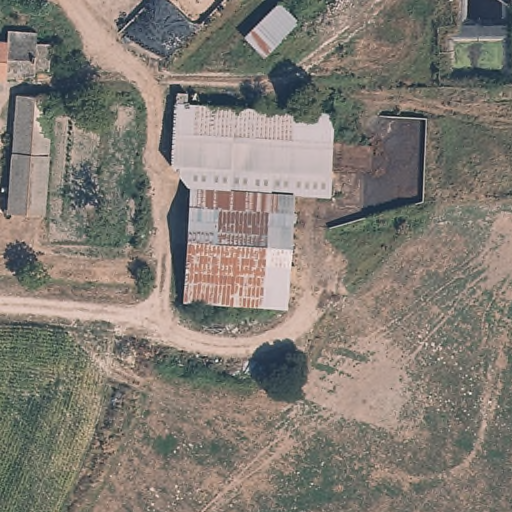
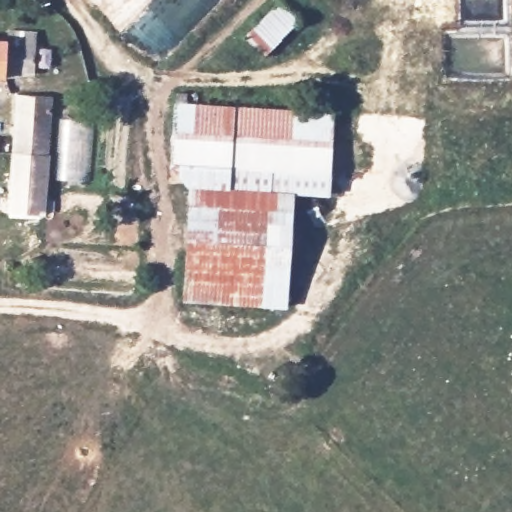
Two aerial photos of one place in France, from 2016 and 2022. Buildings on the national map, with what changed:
unchanged [(301,22),(265,56),(246,37),(267,15),(282,2),(298,19),(301,22)]
unchanged [(37,42),(51,43),(49,70),(35,69),(35,76),(8,74),(7,80),(0,79),(0,30),(39,32),(37,42)]
unchanged [(5,213),(5,198),(12,199),(20,95),(52,96),(47,214),(5,213)]
unchanged [(188,96),(189,109),(297,114),(295,142),(175,136),(177,96),(188,96)]
unchanged [(297,114),(335,116),(333,145),(295,142),(297,114)]
unchanged [(192,194),(172,164),(175,136),(295,142),(293,196),(289,299),(289,302),(287,312),(273,313),(186,306),(186,295),(192,194)]
unchanged [(329,197),(293,196),(295,142),(333,145),(329,197)]

